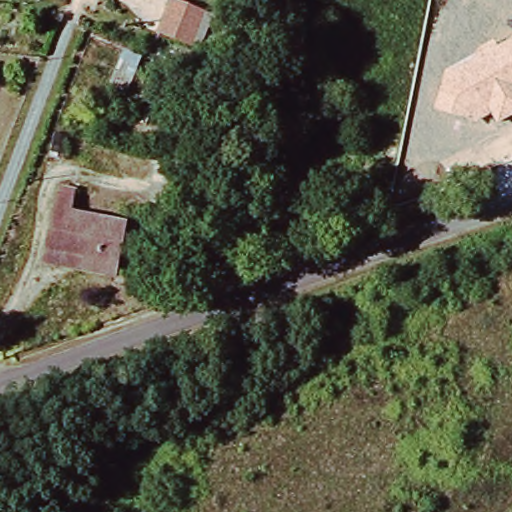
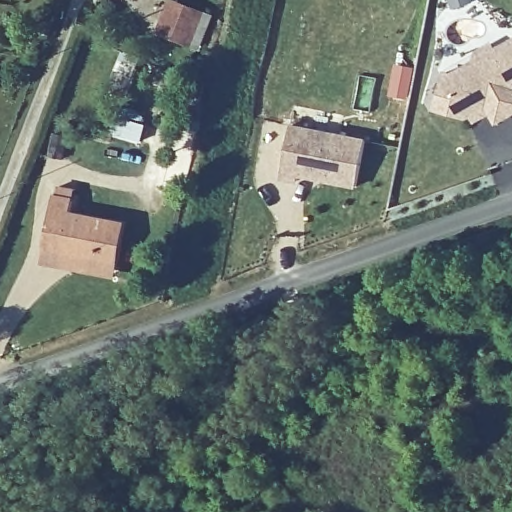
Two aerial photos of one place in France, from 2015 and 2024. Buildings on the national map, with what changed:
unchanged [(200,40),(167,33),(172,7),(174,0),(179,0),(187,2),(207,7),(200,40)]
unchanged [(489,113),(475,122),(432,110),(445,70),(452,72),(473,59),(475,50),(494,42),(497,47),(512,39),(512,115),(494,124),(489,113)]
new [(291,128),(366,142),(358,184),(300,172),(299,178),(282,175),(291,128)]
unchanged [(122,219),(117,256),(46,246),(54,191),(75,195),(72,211),(122,219)]

